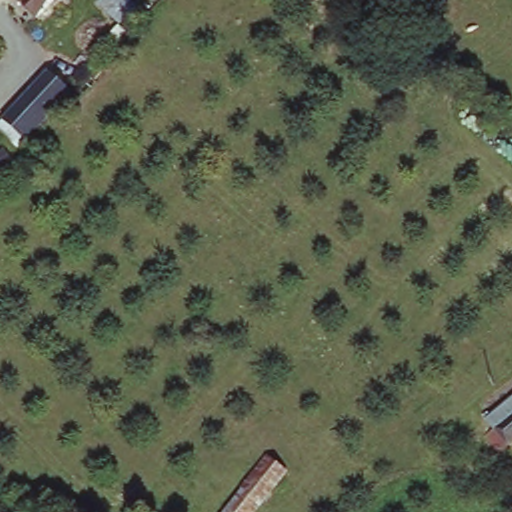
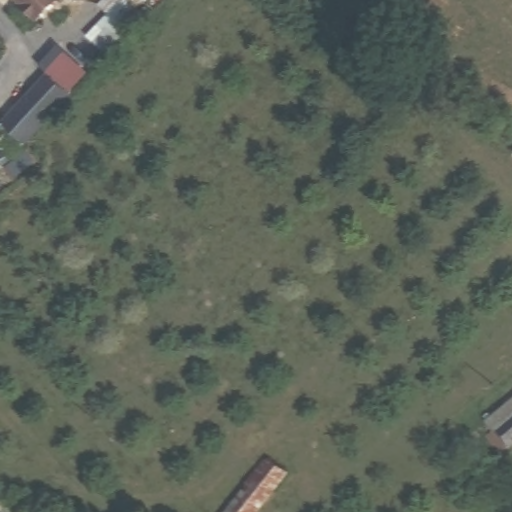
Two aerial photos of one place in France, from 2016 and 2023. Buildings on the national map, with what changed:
unchanged [(52,0),(34,16),(17,0),(52,0)]
unchanged [(47,66),(75,92),(34,141),(2,118),(47,66)]
unchanged [(508,449),(482,420),(512,394),(512,446),(508,449)]
unchanged [(254,512),(223,512),(265,456),(286,471),(254,512)]

